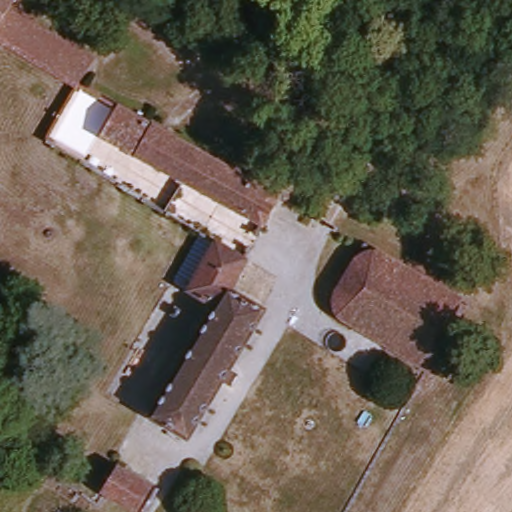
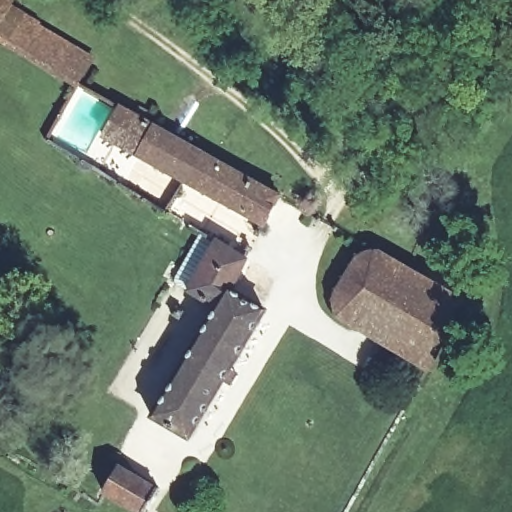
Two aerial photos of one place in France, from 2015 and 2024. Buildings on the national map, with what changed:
unchanged [(47,24),(25,57),(0,41),(0,0),(24,0),(20,6),(47,24)]
unchanged [(47,24),(97,57),(77,90),(25,57),(47,24)]
unchanged [(99,126),(115,100),(152,123),(135,149),(99,126)]
unchanged [(192,147),(177,174),(135,149),(152,123),(192,147)]
unchanged [(280,200),(264,226),(177,174),(192,147),(280,200)]
unchanged [(230,285),(270,310),(191,437),(154,415),(217,306),(184,286),(210,243),(244,263),(230,285)]
unchanged [(432,369),(332,308),(368,249),(468,310),(432,369)]
unchanged [(155,486),(139,512),(137,512),(102,491),(119,464),(155,486)]

